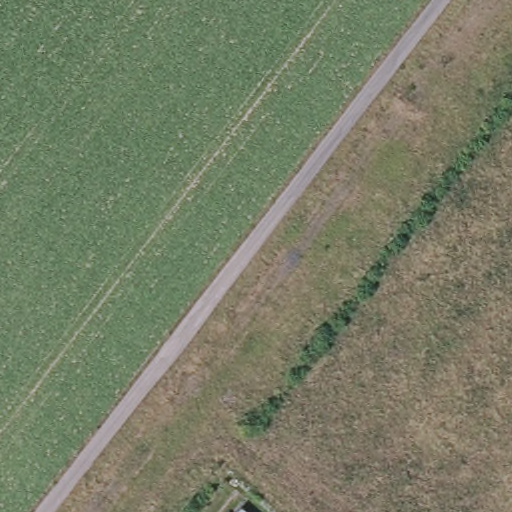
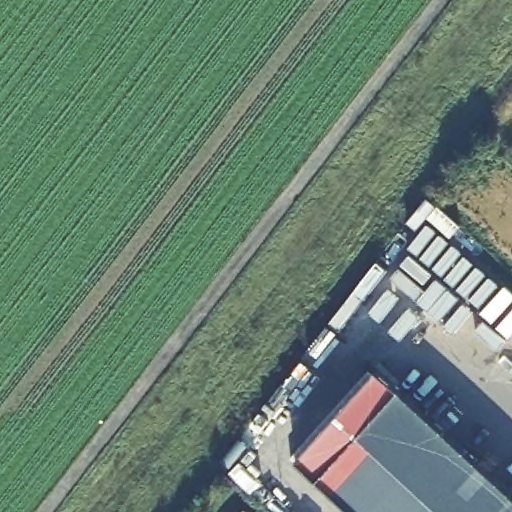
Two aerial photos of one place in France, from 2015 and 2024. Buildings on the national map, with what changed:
new [(400,392),(512,495),(512,512),(353,512),(318,481),(400,392)]

